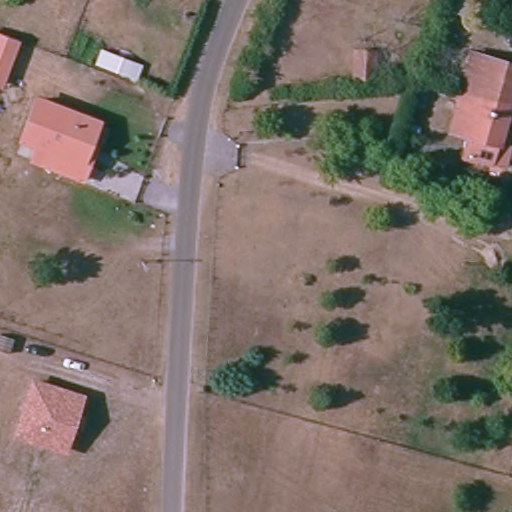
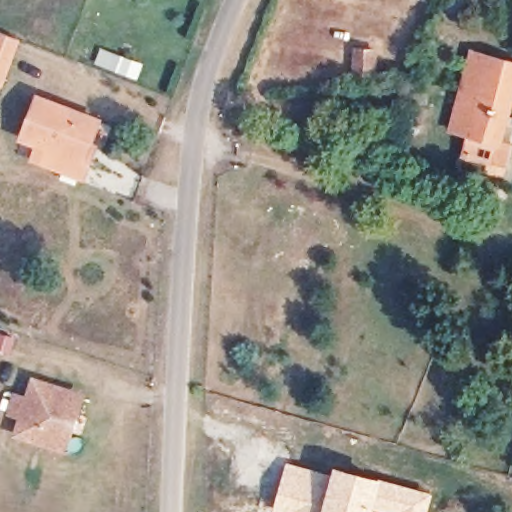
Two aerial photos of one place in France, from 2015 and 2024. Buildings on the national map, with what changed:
unchanged [(0,33),(21,40),(4,88),(0,87),(0,33)]
unchanged [(508,121),(478,114),(481,103),(460,98),(469,57),(512,68),(512,104),(508,121)]
unchanged [(86,161),(80,178),(47,166),(52,151),(19,139),(34,98),(95,120),(86,144),(92,146),(86,161)]
unchanged [(467,160),(472,141),(451,135),(460,98),(481,103),(478,114),(508,121),(502,147),(501,147),(495,166),(467,160)]
unchanged [(12,438),(32,377),(87,394),(67,456),(12,438)]
new [(286,461),(331,473),(333,465),(432,492),(427,512),(271,512),(286,461)]

